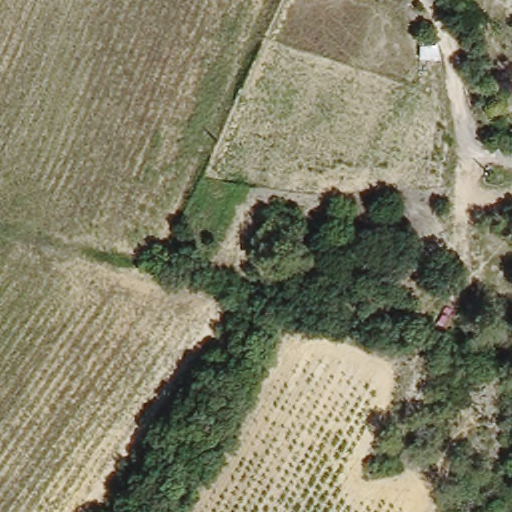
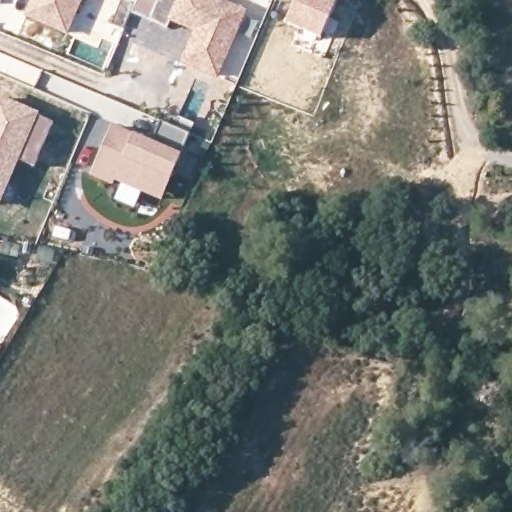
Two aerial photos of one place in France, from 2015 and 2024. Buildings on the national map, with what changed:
new [(34,16),(41,0),(85,0),(82,6),(71,33),(34,16)]
new [(170,26),(158,21),(166,0),(229,0),(248,8),(222,70),(192,58),(182,53),(191,35),(170,26)]
new [(285,24),(295,0),(337,0),(322,39),(285,24)]
new [(34,166),(16,159),(0,196),(0,101),(52,122),(34,166)]
new [(113,185),(91,175),(112,125),(135,133),(134,134),(153,143),(162,124),(188,134),(180,154),(162,199),(116,180),(113,185)]

